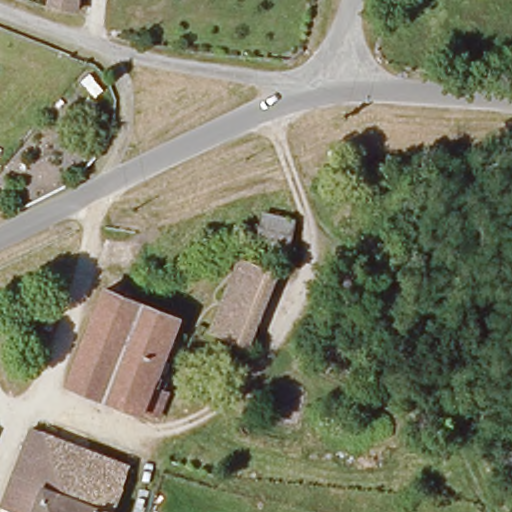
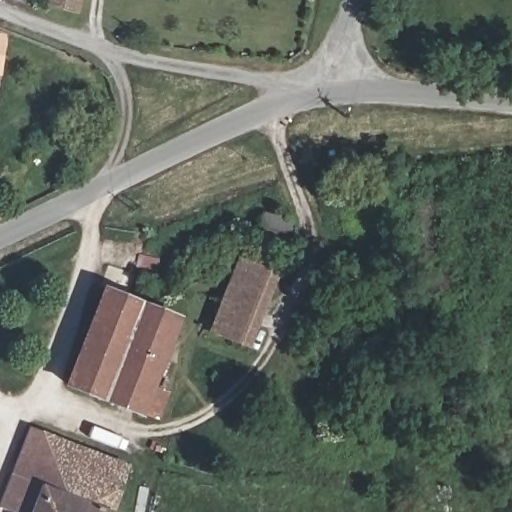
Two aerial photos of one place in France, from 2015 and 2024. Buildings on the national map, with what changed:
unchanged [(77,11),(51,7),(52,0),(79,0),(77,11)]
new [(2,76),(0,76),(0,34),(6,35),(2,76)]
unchanged [(299,221),(293,251),(258,245),(259,213),(299,221)]
unchanged [(276,276),(248,347),(212,333),(239,262),(276,276)]
unchanged [(179,320),(153,389),(166,396),(156,417),(145,412),(142,416),(67,385),(104,289),(179,320)]
unchanged [(29,430),(56,440),(48,461),(120,488),(111,512),(8,512),(0,509),(29,430)]
unchanged [(120,488),(48,461),(56,440),(128,468),(126,473),(120,488)]

